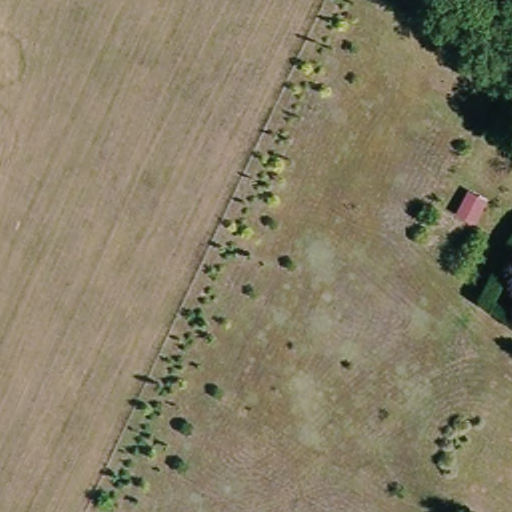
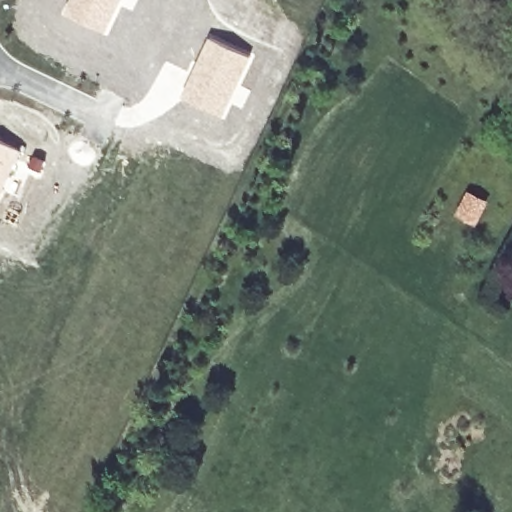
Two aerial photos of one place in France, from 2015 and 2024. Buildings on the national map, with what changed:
new [(121,0),(106,30),(64,12),(69,0),(121,0)]
new [(209,37),(252,57),(224,114),(182,92),(209,37)]
new [(0,198),(0,138),(23,149),(0,198)]

